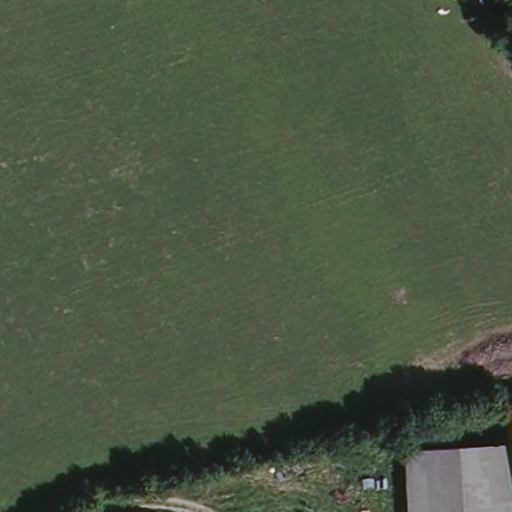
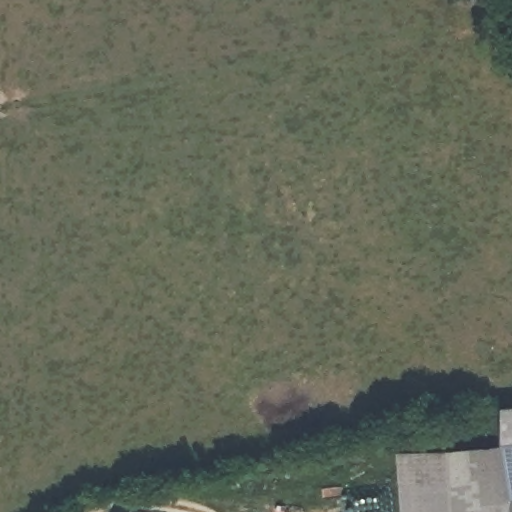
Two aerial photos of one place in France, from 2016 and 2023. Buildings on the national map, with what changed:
unchanged [(512,425),(512,512),(409,512),(406,451),(511,442),(512,425)]
unchanged [(121,510),(124,512),(120,512),(121,510)]

